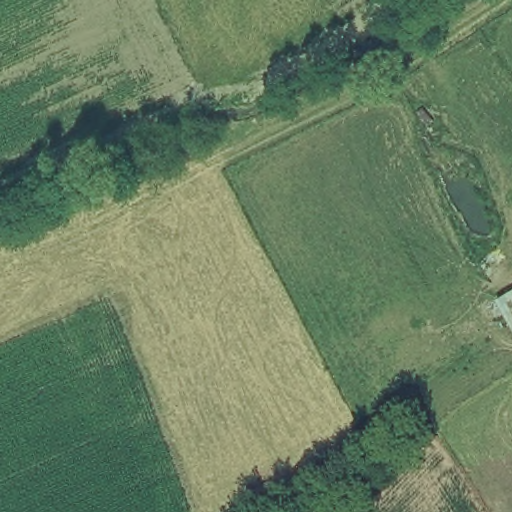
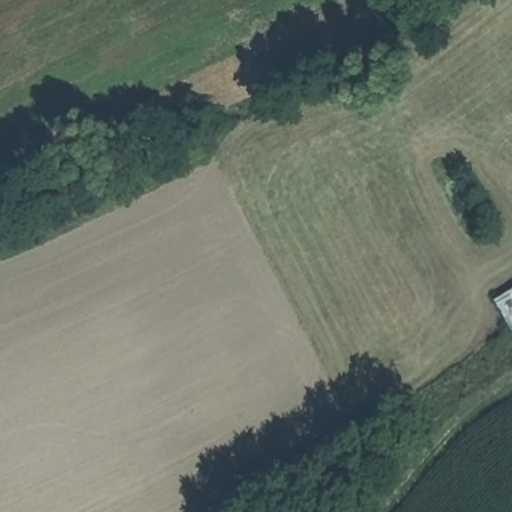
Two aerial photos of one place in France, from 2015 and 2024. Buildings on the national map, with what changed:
unchanged [(512,331),(497,296),(512,288),(512,331)]

